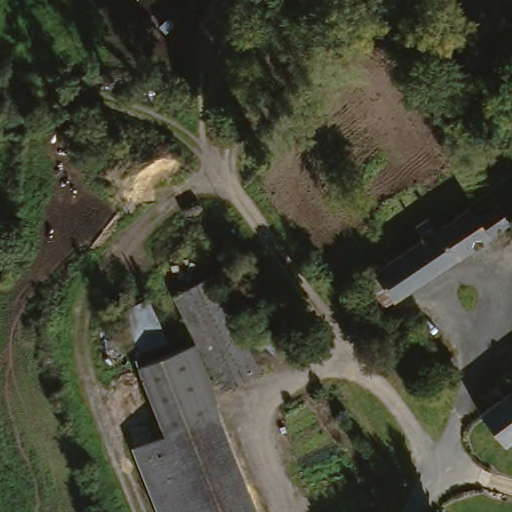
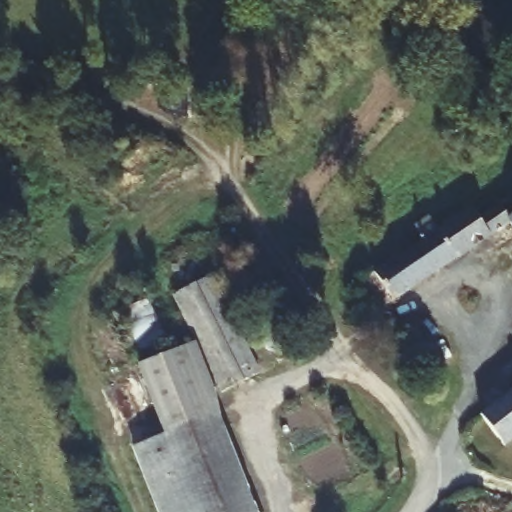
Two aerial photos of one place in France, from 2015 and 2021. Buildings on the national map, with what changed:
unchanged [(470,223),(489,208),(498,217),(512,208),(512,241),(502,227),(394,308),(380,319),(358,293),(374,281),(463,215),(470,223)]
unchanged [(212,394),(219,424),(253,512),(152,512),(127,449),(157,436),(132,369),(112,317),(144,297),(169,351),(192,345),(169,296),(211,277),(259,375),(212,394)]
unchanged [(408,330),(432,362),(424,369),(399,337),(408,330)]
unchanged [(512,441),(507,446),(481,414),(512,387),(512,441)]

